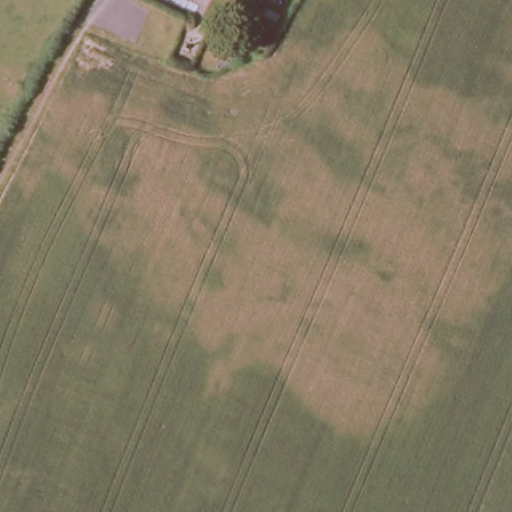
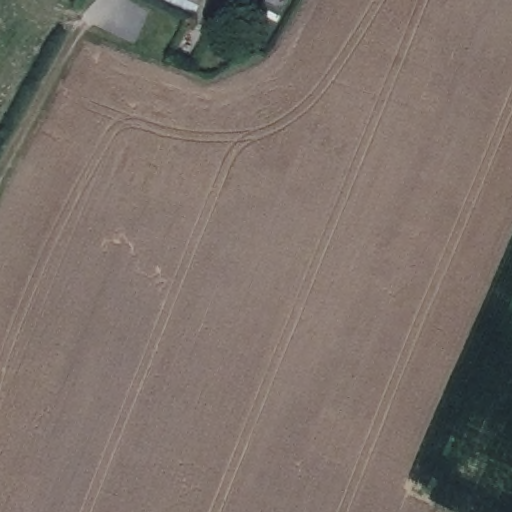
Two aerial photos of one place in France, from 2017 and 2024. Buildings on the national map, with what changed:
[]

